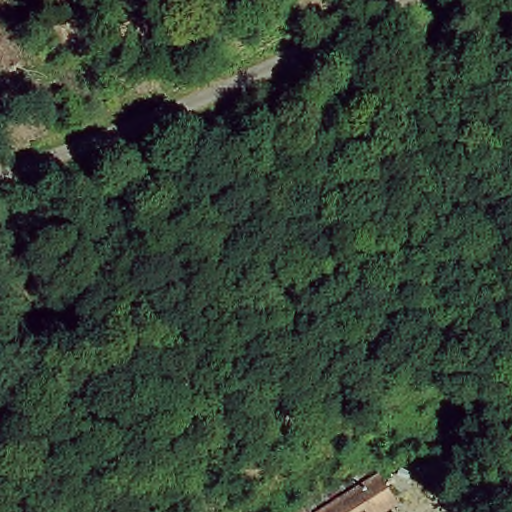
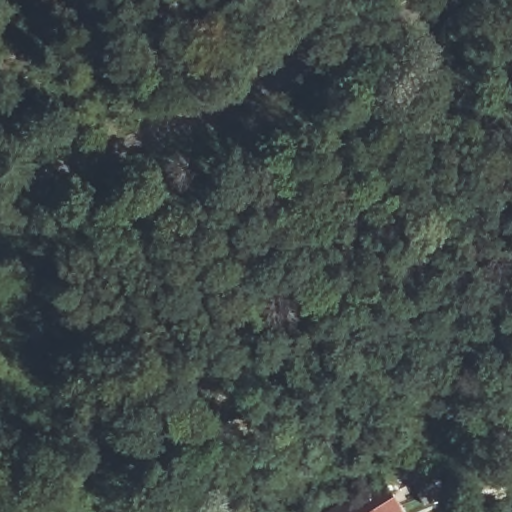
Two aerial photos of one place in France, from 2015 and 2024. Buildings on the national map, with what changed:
unchanged [(393,512),(328,512),(383,478),(400,507),(393,512)]

